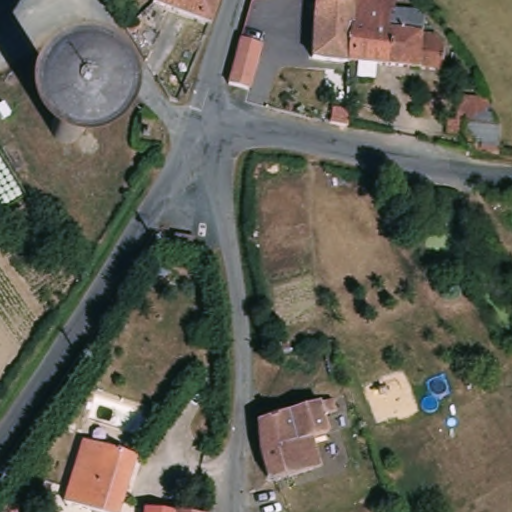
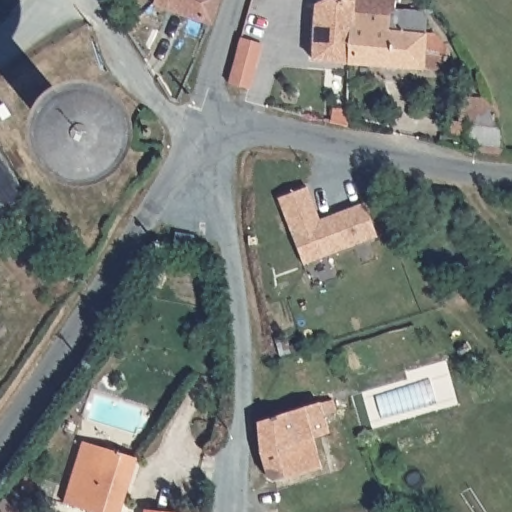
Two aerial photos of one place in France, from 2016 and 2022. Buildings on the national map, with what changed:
unchanged [(213,20),(160,0),(220,0),(213,20)]
unchanged [(347,59),(313,56),(318,0),(353,0),(347,59)]
unchanged [(396,8),(388,7),(388,19),(387,62),(352,59),(347,59),(353,0),(396,0),(396,8)]
unchanged [(388,19),(388,7),(396,8),(421,9),(426,14),(425,30),(433,31),(445,45),(444,67),(387,62),(388,19)]
unchanged [(255,47),(244,87),(237,85),(228,83),(237,41),(255,47)]
unchanged [(497,110),(498,118),(502,118),(503,146),(475,143),(476,136),(468,135),(471,108),(497,110)]
unchanged [(343,113),(342,129),(328,125),(329,110),(343,113)]
new [(297,188),(311,221),(356,201),(370,234),(297,266),(268,201),(297,188)]
unchanged [(330,400),(333,411),(322,415),(327,432),(312,437),(262,453),(257,424),(330,400)]
unchanged [(312,437),(320,466),(302,472),(282,478),(276,479),(271,478),(268,474),(262,453),(312,437)]
unchanged [(73,441),(77,440),(86,440),(137,457),(123,512),(91,512),(77,507),(54,500),(66,461),(70,447),(73,441)]
unchanged [(39,481),(35,496),(19,491),(23,476),(39,481)]
unchanged [(172,512),(148,512),(149,509),(172,512)]

